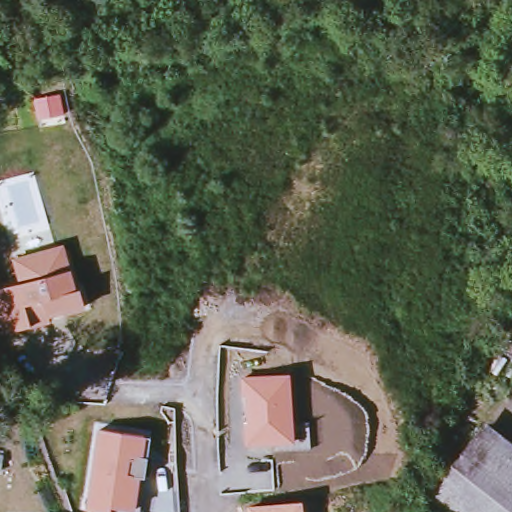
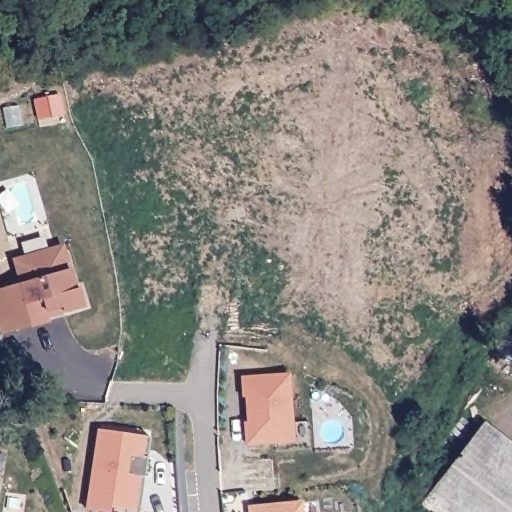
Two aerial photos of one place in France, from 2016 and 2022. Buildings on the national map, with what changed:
unchanged [(0,332),(0,285),(17,280),(12,258),(62,243),(71,268),(76,286),(81,284),(86,304),(29,324),(0,332)]
unchanged [(294,440),(245,445),(242,423),(247,422),(246,395),(242,395),(241,377),(291,373),(294,440)]
unchanged [(134,508),(107,505),(107,511),(85,509),(97,428),(142,434),(134,508)]
unchanged [(429,489),(490,430),(512,452),(512,512),(452,512),(429,489)]
unchanged [(303,512),(248,512),(247,506),(302,501),(303,512)]

